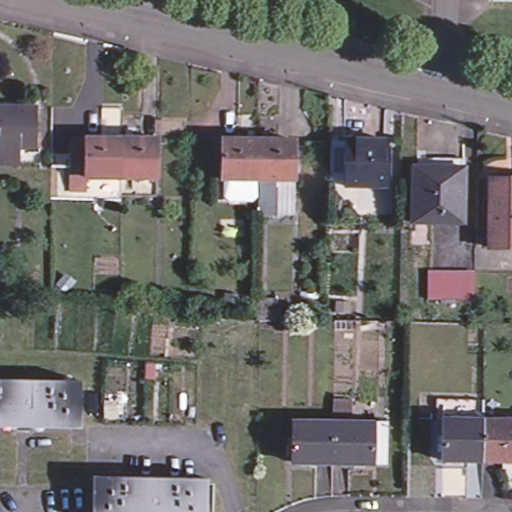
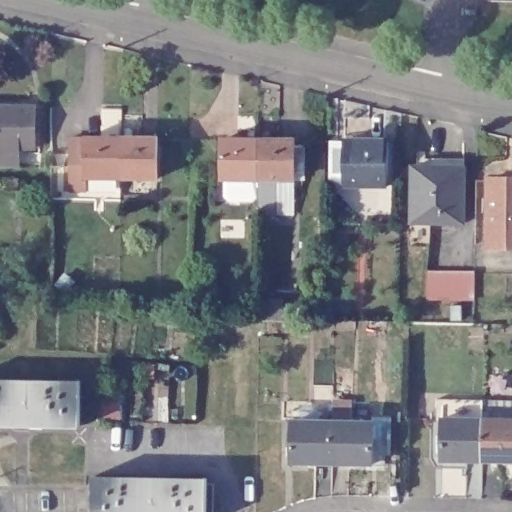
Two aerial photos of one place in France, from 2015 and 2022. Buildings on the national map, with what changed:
unchanged [(37,151),(0,150),(0,110),(38,110),(37,151)]
unchanged [(135,134),(135,174),(100,173),(100,187),(83,187),(85,133),(100,134),(135,134)]
unchanged [(135,134),(170,135),(170,174),(135,174),(135,134)]
unchanged [(260,140),(261,180),(225,180),(225,140),(260,140)]
unchanged [(295,141),(295,181),(261,180),(260,140),(295,141)]
unchanged [(390,142),(390,186),(347,185),(348,142),(390,142)]
unchanged [(437,167),(437,159),(468,158),(468,220),(419,220),(419,167),(437,167)]
unchanged [(493,175),(512,175),(512,242),(494,242),(493,175)]
unchanged [(261,180),(295,181),(295,215),(257,214),(257,199),(225,199),(225,180),(261,180)]
unchanged [(427,298),(427,272),(473,272),(473,300),(427,298)]
unchanged [(82,425),(0,423),(0,378),(82,380),(82,425)]
unchanged [(328,418),(328,400),(348,400),(348,418),(370,418),(383,418),(383,451),(370,451),(370,458),(328,458),(288,458),(288,419),(328,418)]
unchanged [(509,412),(512,411),(512,463),(510,462),(469,462),(469,423),(509,422),(509,412)]
unchanged [(429,462),(428,423),(469,423),(469,462),(429,462)]
unchanged [(208,475),(208,512),(96,512),(97,470),(208,475)]

